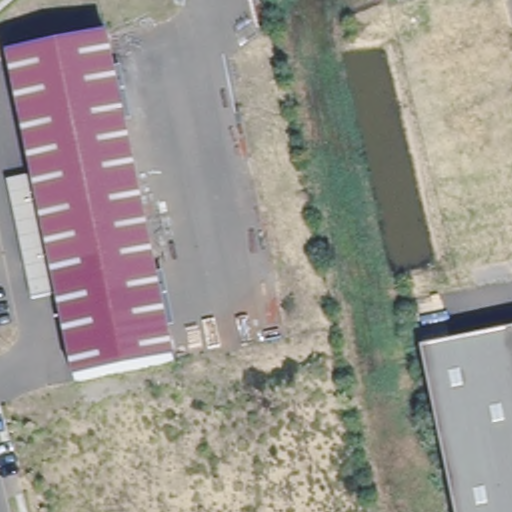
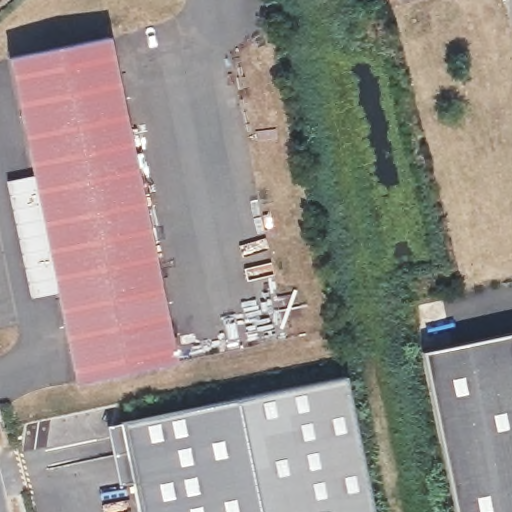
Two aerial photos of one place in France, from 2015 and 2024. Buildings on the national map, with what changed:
unchanged [(109,38),(176,363),(78,383),(60,295),(35,177),(11,59),(109,38)]
unchanged [(34,300),(9,183),(35,177),(60,295),(34,300)]
unchanged [(512,335),(512,512),(455,512),(421,353),(512,335)]
new [(261,512),(238,399),(347,376),(374,512),(261,512)]
new [(142,512),(135,478),(119,482),(108,426),(123,422),(238,399),(261,512),(142,512)]

